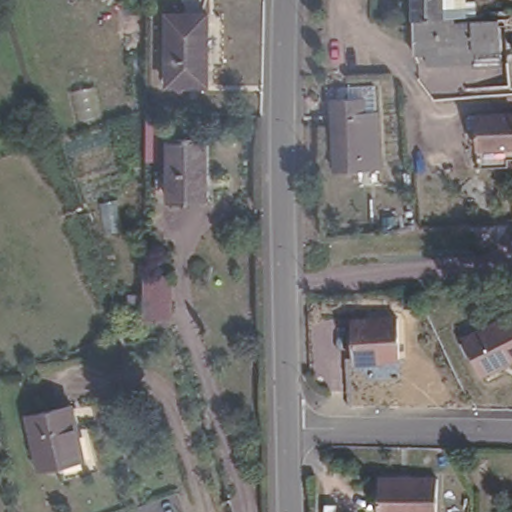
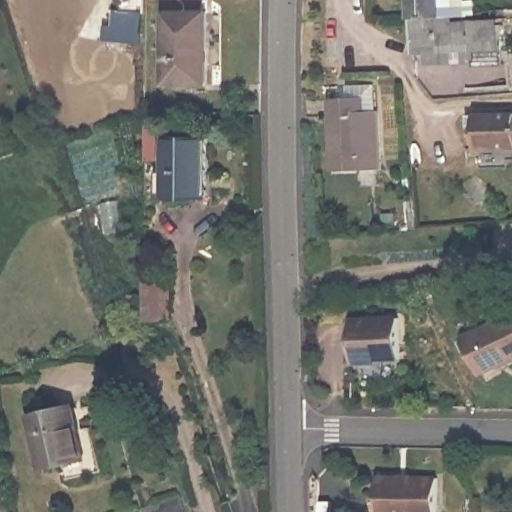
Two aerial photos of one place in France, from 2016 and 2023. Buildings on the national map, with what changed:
unchanged [(497,15),(498,61),(408,59),(407,0),(445,0),(445,14),(497,15)]
demolished [(509,0),(512,0),(512,5),(509,5),(509,0)]
new [(151,10),(146,47),(102,44),(104,21),(113,22),(115,5),(151,10)]
unchanged [(212,81),(162,84),(161,8),(209,10),(212,81)]
unchanged [(339,91),(339,78),(364,78),(365,104),(368,104),(370,151),(350,151),(350,163),(325,164),(325,144),(324,91),(339,91)]
unchanged [(475,115),(512,113),(512,150),(476,151),(475,115)]
unchanged [(210,197),(187,197),(184,143),(204,142),(210,197)]
unchanged [(174,281),(174,323),(141,321),(145,279),(174,281)]
unchanged [(512,312),(512,356),(476,372),(460,336),(512,312)]
unchanged [(372,359),(351,360),(348,317),(393,315),(396,352),(371,353),(372,359)]
unchanged [(29,410),(66,399),(80,448),(43,458),(29,410)]
unchanged [(377,476),(432,477),(431,512),(376,512),(377,476)]

